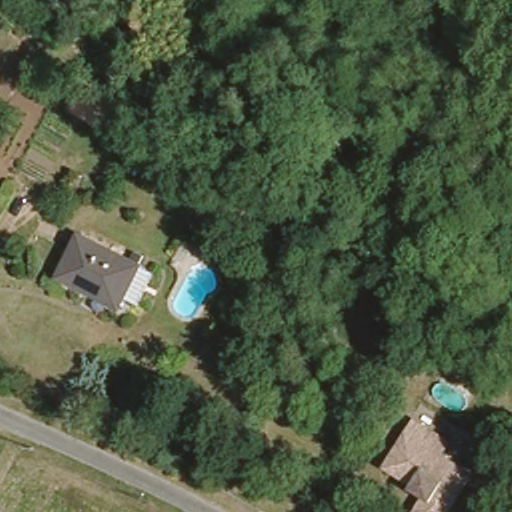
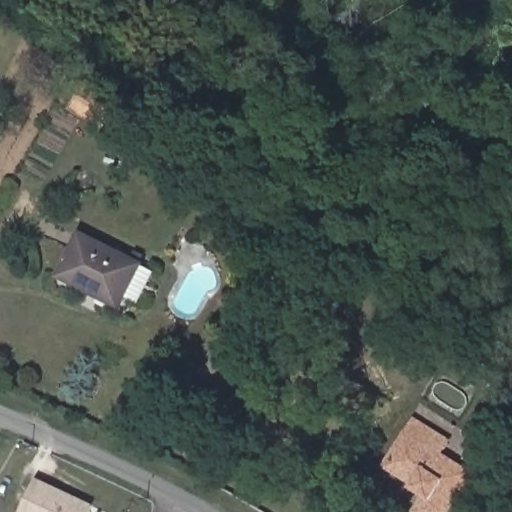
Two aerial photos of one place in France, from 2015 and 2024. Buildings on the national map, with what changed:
unchanged [(131,115),(114,141),(71,113),(90,86),(131,115)]
unchanged [(157,269),(138,304),(123,295),(114,312),(55,279),(85,228),(157,269)]
unchanged [(420,480),(390,461),(400,446),(419,416),(437,427),(451,436),(441,450),(474,471),(447,512),(421,512),(417,510),(428,494),(415,485),(420,480)]
new [(85,512),(19,512),(35,478),(89,504),(85,512)]

